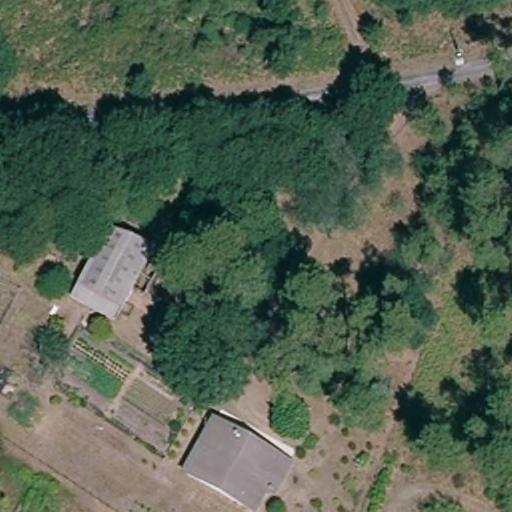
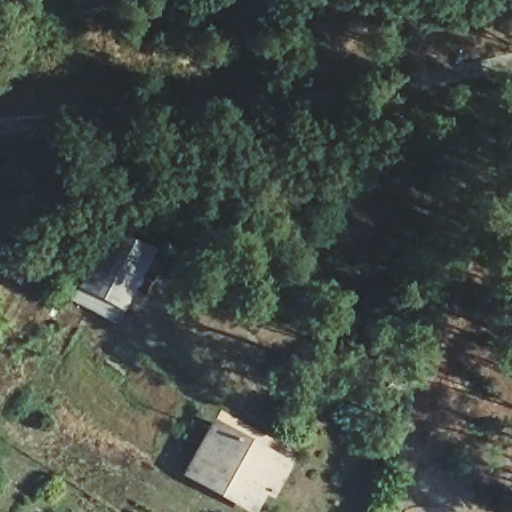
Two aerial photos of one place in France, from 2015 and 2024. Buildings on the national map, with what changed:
unchanged [(145,245),(139,263),(162,274),(154,296),(129,282),(112,305),(80,290),(112,227),(145,245)]
unchanged [(266,512),(246,512),(179,473),(212,416),(292,464),(266,512)]

